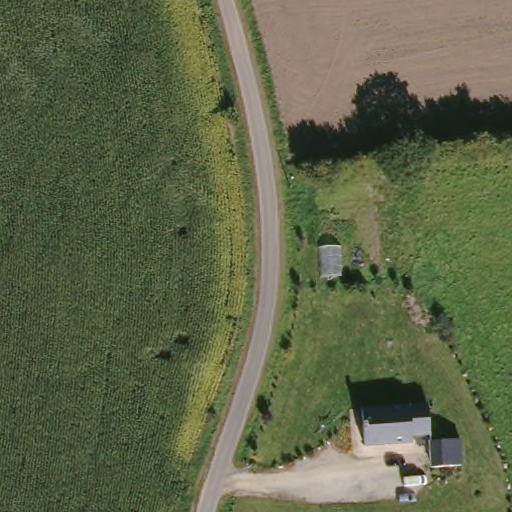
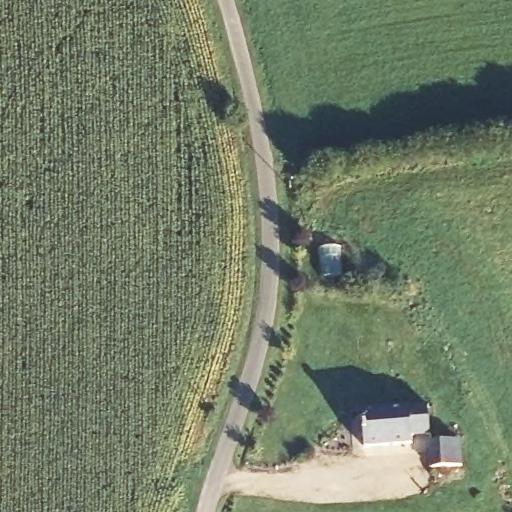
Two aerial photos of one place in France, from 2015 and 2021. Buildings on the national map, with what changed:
unchanged [(431,440),(363,449),(360,412),(426,407),(431,440)]

